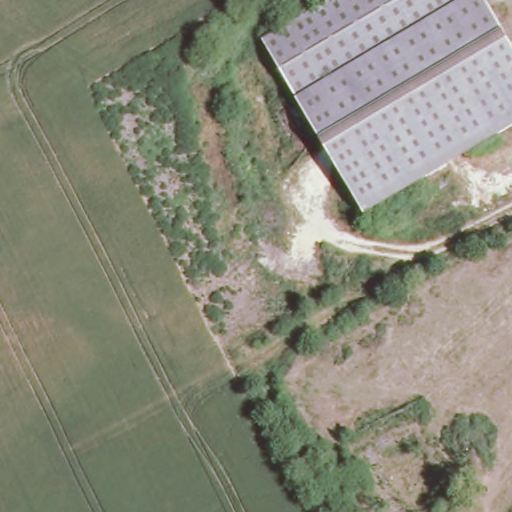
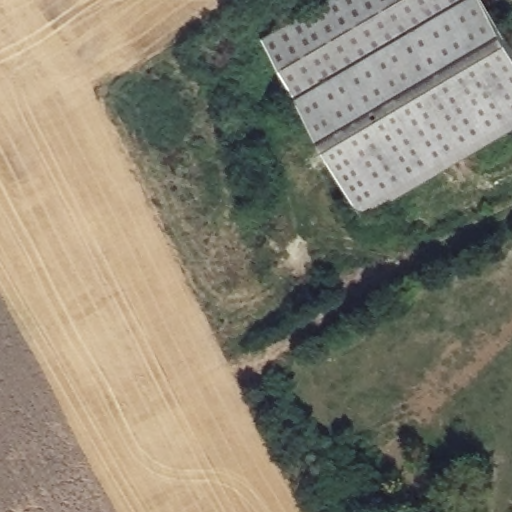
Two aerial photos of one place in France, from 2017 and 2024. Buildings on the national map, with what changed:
unchanged [(512,130),(366,218),(263,38),(330,0),(491,0),(512,36),(512,130)]

